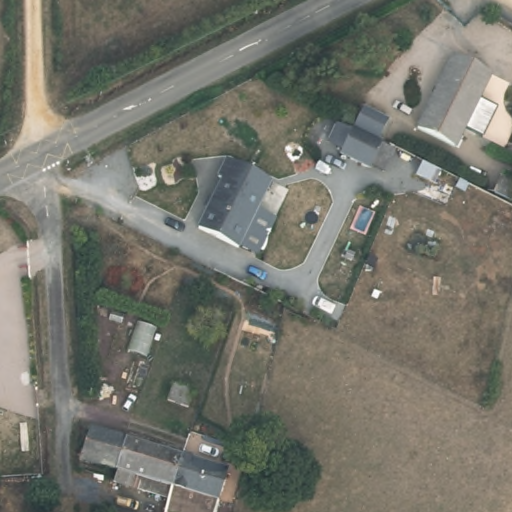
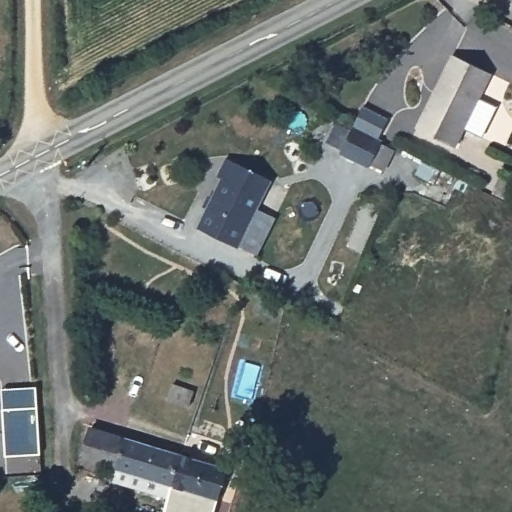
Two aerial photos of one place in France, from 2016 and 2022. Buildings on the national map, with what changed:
unchanged [(478,96),(496,104),(482,133),(464,125),(455,143),(413,124),(448,51),(489,71),(478,96)]
unchanged [(382,141),(369,168),(340,155),(353,128),(382,141)]
unchanged [(273,175),(241,244),(201,225),(225,175),(219,172),(228,155),(273,175)]
unchanged [(187,407),(168,401),(173,384),(192,389),(187,407)]
new [(1,389),(37,386),(41,454),(5,456),(1,389)]
unchanged [(89,455),(99,424),(131,434),(121,465),(89,455)]
unchanged [(149,485),(152,472),(141,468),(136,482),(118,475),(121,465),(131,434),(188,451),(180,477),(175,495),(149,485)]
unchanged [(218,512),(179,512),(171,510),(172,504),(175,495),(180,477),(188,451),(231,463),(223,495),(218,512)]

